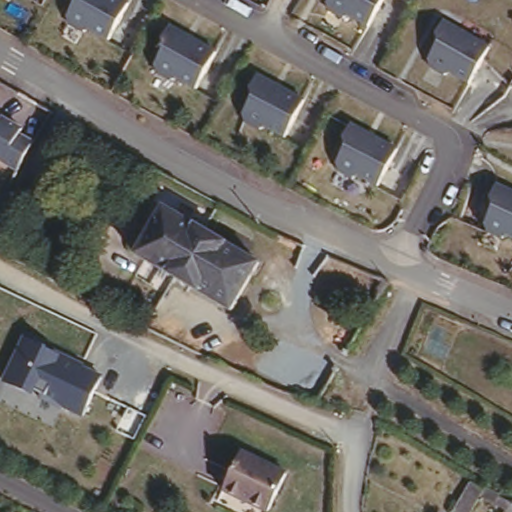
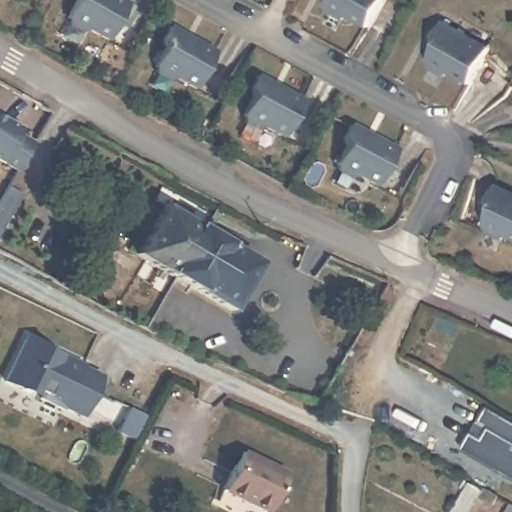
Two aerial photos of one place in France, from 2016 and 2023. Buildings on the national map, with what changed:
unchanged [(89,24),(83,25),(68,17),(66,11),(72,0),(126,0),(107,34),(89,24)]
unchanged [(352,15),(346,16),(331,9),(329,2),(330,0),(383,0),(370,25),(352,15)]
unchanged [(491,44),(472,80),(455,70),(448,72),(433,65),(431,59),(441,40),(438,32),(445,20),(491,44)]
unchanged [(215,49),(195,85),(178,75),(172,76),(157,67),(155,61),(165,44),(163,35),(170,23),(215,49)]
unchanged [(304,99),(283,135),(266,125),(260,126),(245,117),(243,111),(253,94),(251,85),(258,73),(304,99)]
unchanged [(397,144),(376,180),(359,170),(352,171),(338,162),(336,156),(346,139),(344,130),(351,117),(397,144)]
unchanged [(21,131),(16,139),(31,147),(17,172),(0,162),(0,119),(21,131)]
unchanged [(512,231),(508,229),(502,231),(487,224),(484,218),(493,200),(490,192),(496,179),(512,186),(512,231)]
unchanged [(133,251),(161,205),(203,230),(176,277),(173,275),(133,251)]
unchanged [(82,224),(53,277),(38,270),(68,216),(82,224)]
unchanged [(256,260),(227,307),(176,277),(203,230),(256,260)]
unchanged [(64,406),(62,408),(4,381),(25,337),(102,377),(82,415),(64,406)]
new [(484,402),(512,419),(512,478),(464,451),(465,442),(484,402)]
unchanged [(283,476),(267,512),(260,512),(221,493),(239,455),(283,476)]
unchanged [(481,500),(472,512),(451,512),(468,483),(484,492),(485,490),(511,503),(506,512),(504,512),(481,500)]

